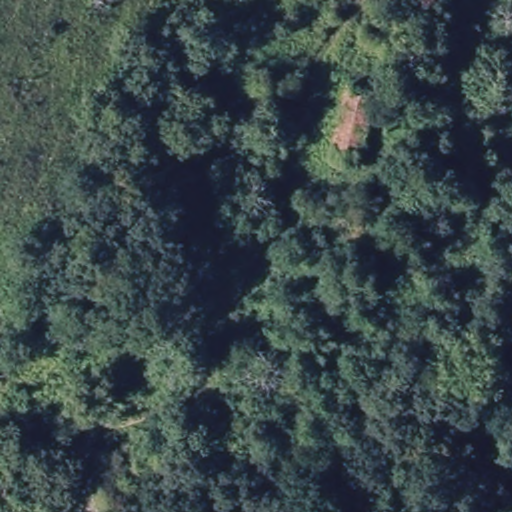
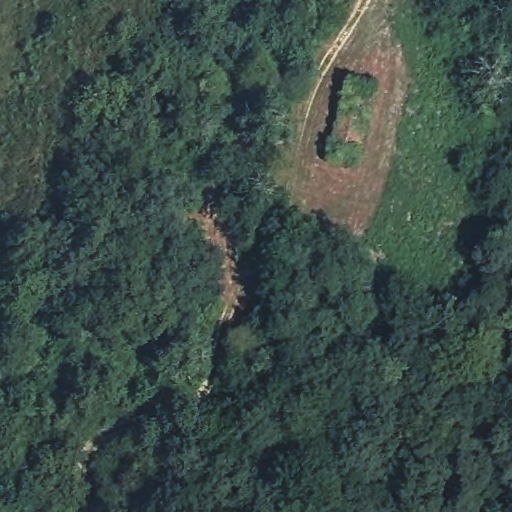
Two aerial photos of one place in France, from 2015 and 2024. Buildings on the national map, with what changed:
unchanged [(338,155),(349,97),(371,101),(362,158),(338,155)]

